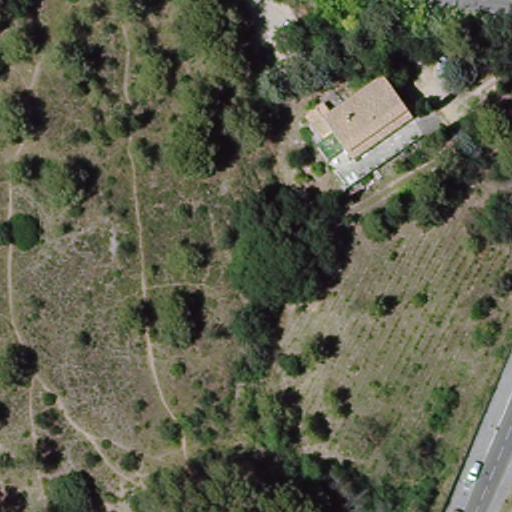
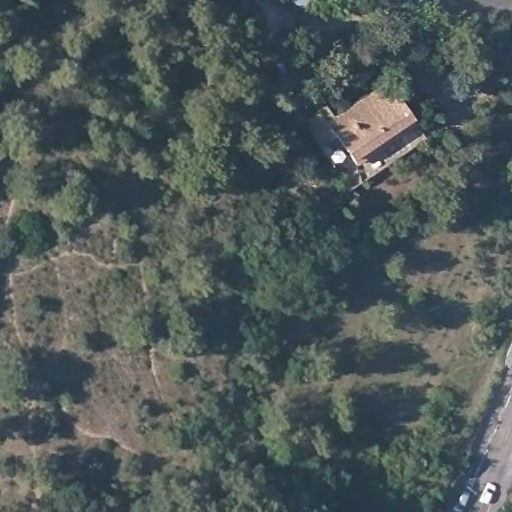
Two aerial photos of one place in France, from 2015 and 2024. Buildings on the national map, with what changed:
unchanged [(318,129),(322,125),(306,102),(317,94),(325,104),(383,63),(412,102),(351,143),(344,133),(329,144),(318,129)]
unchanged [(337,156),(329,144),(344,133),(351,143),(412,102),(423,118),(346,171),(337,156)]

